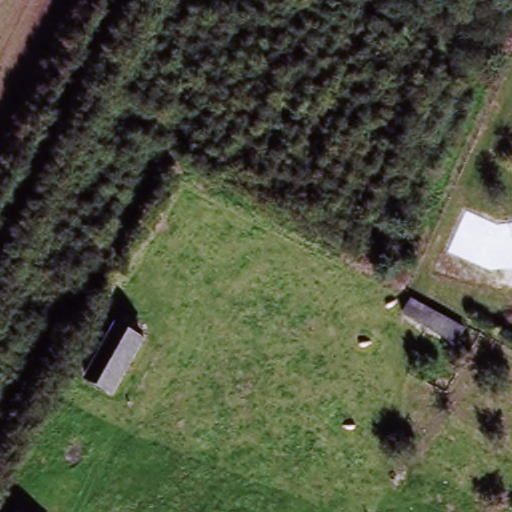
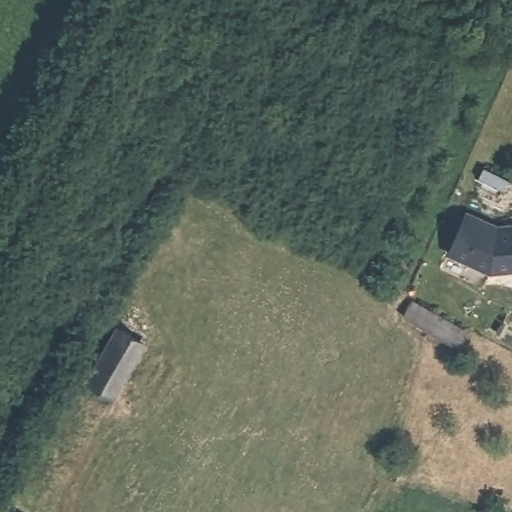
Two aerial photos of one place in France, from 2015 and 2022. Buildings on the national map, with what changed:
new [(491,275),(450,257),(467,216),(500,230),(512,228),(512,273),(491,275)]
unchanged [(461,346),(407,318),(416,301),(469,331),(461,346)]
unchanged [(85,380),(116,327),(141,340),(111,395),(85,380)]
unchanged [(34,512),(26,512),(28,509),(34,512)]

